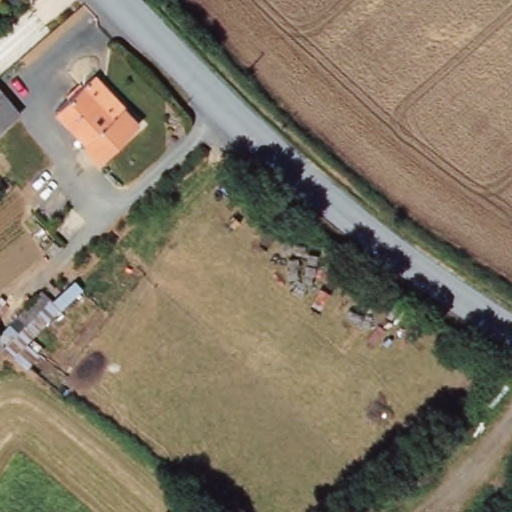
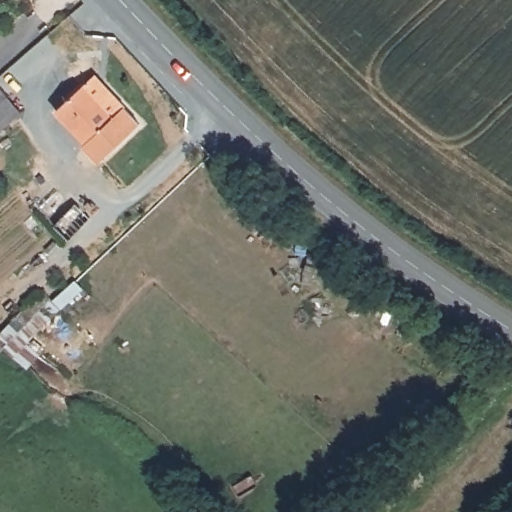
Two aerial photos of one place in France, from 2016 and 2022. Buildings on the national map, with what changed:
unchanged [(98,160),(81,143),(85,139),(56,110),(85,84),(95,75),(122,104),(139,122),(98,160)]
unchanged [(0,97),(0,83),(7,91),(0,97)]
unchanged [(62,304),(30,342),(40,350),(26,366),(3,348),(0,349),(0,330),(42,288),(62,304)]

